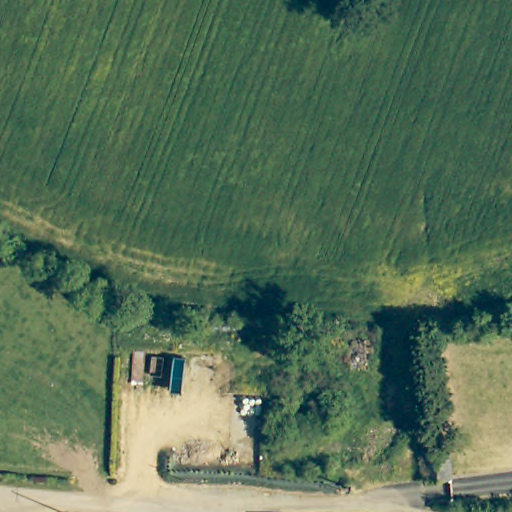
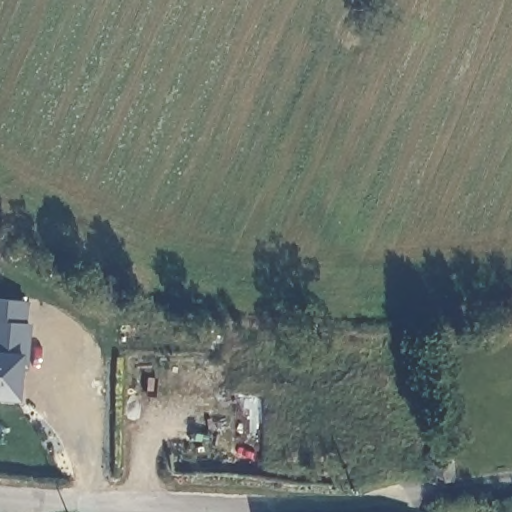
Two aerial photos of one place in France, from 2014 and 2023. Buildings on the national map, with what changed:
new [(30,323),(26,366),(21,366),(18,401),(0,399),(0,298),(26,300),(25,323),(30,323)]
unchanged [(441,441),(440,450),(444,455),(445,482),(424,486),(420,455),(428,436),(435,435),(441,441)]

